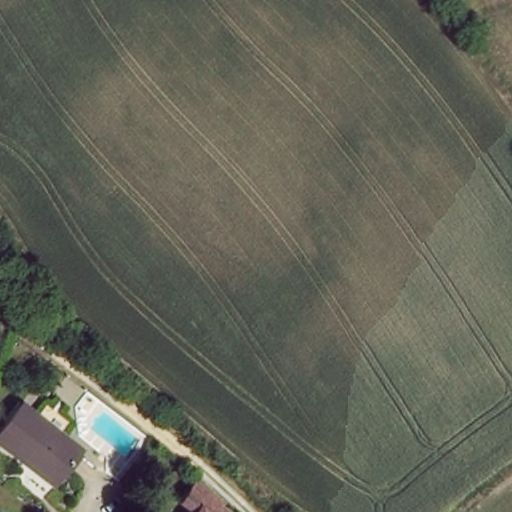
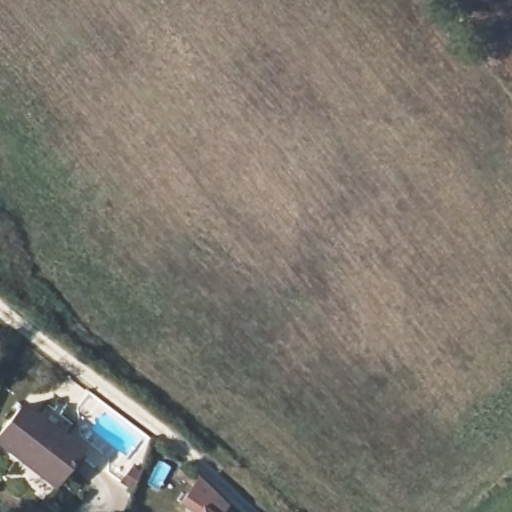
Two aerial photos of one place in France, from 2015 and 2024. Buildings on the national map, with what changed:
unchanged [(0,449),(0,436),(21,409),(38,422),(48,409),(70,424),(60,439),(81,454),(61,483),(55,491),(20,464),(0,449)]
unchanged [(236,512),(199,512),(186,502),(203,479),(236,512)]

